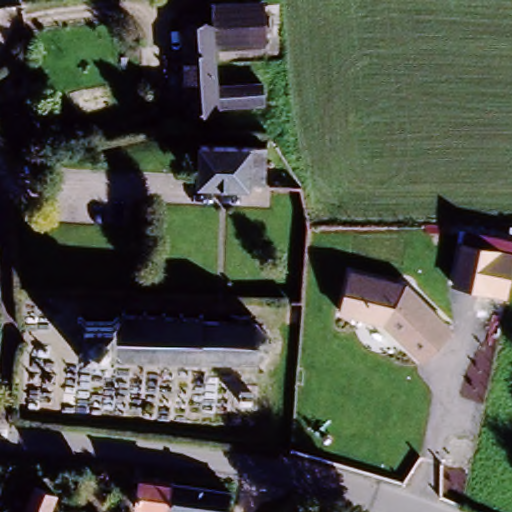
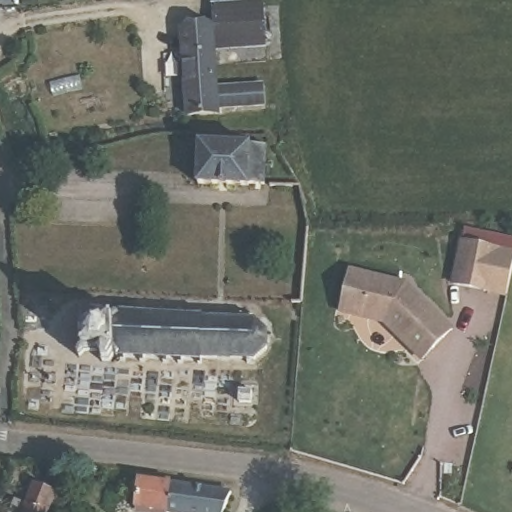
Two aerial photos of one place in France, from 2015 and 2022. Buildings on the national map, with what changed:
unchanged [(211,107),(185,109),(183,71),(183,55),(181,30),(210,30),(210,9),(263,9),(264,41),(210,41),(210,55),(211,87),(257,86),(258,106),(211,107)]
unchanged [(259,195),(197,188),(202,145),(263,151),(259,195)]
unchanged [(507,244),(498,292),(456,283),(464,239),(507,244)]
unchanged [(351,265),(411,278),(455,327),(424,358),(379,320),(341,311),(351,265)]
unchanged [(116,355),(94,354),(94,363),(84,362),(81,362),(82,312),(96,312),(96,319),(119,319),(119,311),(136,311),(136,319),(145,319),(145,311),(159,311),(159,320),(178,320),(178,311),(193,311),(193,320),(201,320),(201,312),(215,312),(215,320),(228,320),(228,311),(241,311),(241,320),(257,320),(257,310),(270,311),(270,320),(274,320),(274,368),(254,368),(254,360),(243,360),(243,368),(228,367),(228,360),(216,359),(216,367),(202,366),(202,358),(194,358),(194,367),(181,367),(181,357),(157,356),(156,365),(143,365),(143,356),(130,355),(130,365),(116,364),(116,355)]
unchanged [(217,512),(158,512),(158,505),(141,503),(141,477),(186,482),(181,494),(217,501),(217,512)]

